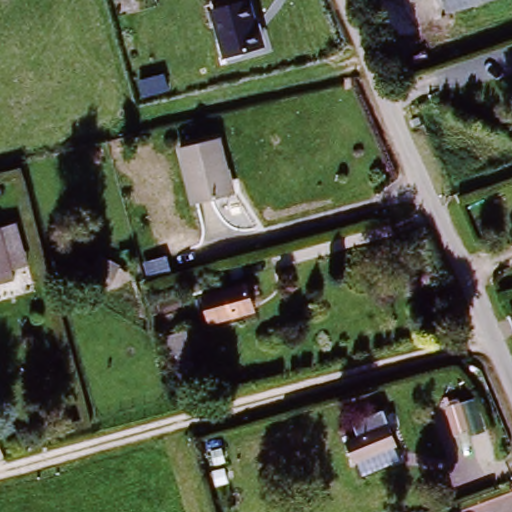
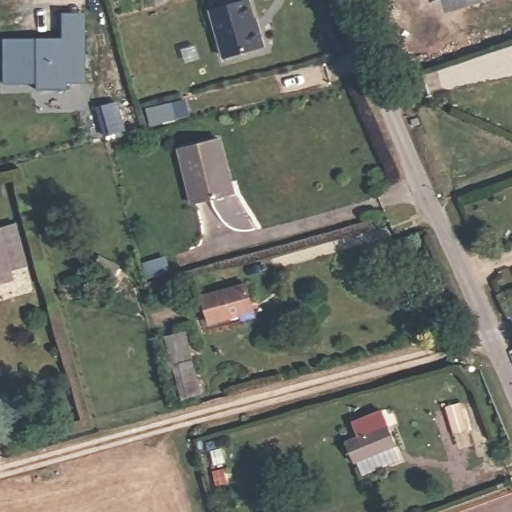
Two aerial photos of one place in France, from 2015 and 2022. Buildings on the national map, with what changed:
unchanged [(251,0),(267,49),(222,62),(207,12),(251,0)]
unchanged [(443,0),(493,0),(447,15),(443,0)]
new [(40,36),(40,46),(65,46),(65,29),(65,11),(87,11),(87,29),(87,37),(87,82),(69,82),(69,89),(39,89),(39,82),(6,83),(6,37),(40,36)]
new [(117,102),(124,130),(105,135),(98,107),(117,102)]
unchanged [(181,147),(219,136),(233,189),(196,200),(181,147)]
unchanged [(14,270),(15,282),(0,287),(0,227),(20,221),(32,266),(14,270)]
unchanged [(110,290),(87,279),(100,254),(122,266),(110,290)]
unchanged [(255,312),(212,323),(205,296),(247,283),(255,312)]
unchanged [(180,402),(171,363),(165,365),(160,352),(167,350),(164,338),(175,336),(182,355),(194,353),(202,397),(180,402)]
unchanged [(392,438),(395,451),(352,463),(347,442),(390,430),(392,438)]

